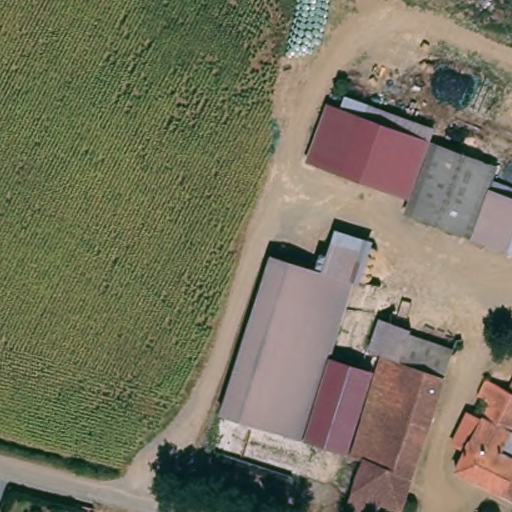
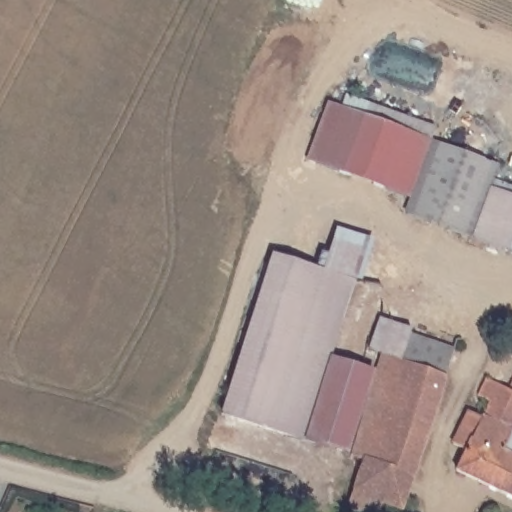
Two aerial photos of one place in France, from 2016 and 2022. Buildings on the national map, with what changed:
unchanged [(384,191),(306,159),(326,101),(341,106),(345,94),(412,120),(384,191)]
unchanged [(467,236),(406,213),(411,201),(384,191),(412,120),(435,129),(430,140),(498,164),(493,176),(512,182),(512,252),(467,236)]
unchanged [(275,255),(325,272),(335,242),(364,254),(367,255),(357,283),(333,354),(306,435),(294,431),(224,408),(275,255)]
unchanged [(373,347),(385,316),(417,329),(414,336),(406,358),(388,353),(373,347)]
unchanged [(406,358),(414,336),(456,350),(405,507),(387,501),(383,512),(365,512),(351,508),(368,460),(354,455),(388,353),(406,358)]
unchanged [(333,354),(378,369),(352,450),(306,435),(333,354)]
unchanged [(455,472),(465,451),(452,442),(467,412),(482,418),(491,404),(475,395),(487,378),(507,389),(512,380),(512,450),(509,456),(512,457),(512,500),(455,472)]
unchanged [(512,450),(512,457),(509,456),(512,450)]

